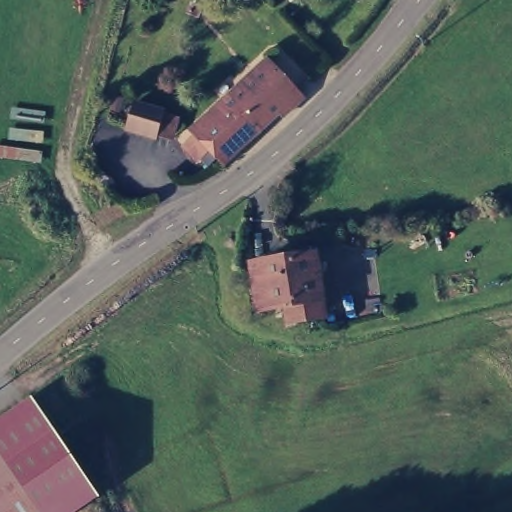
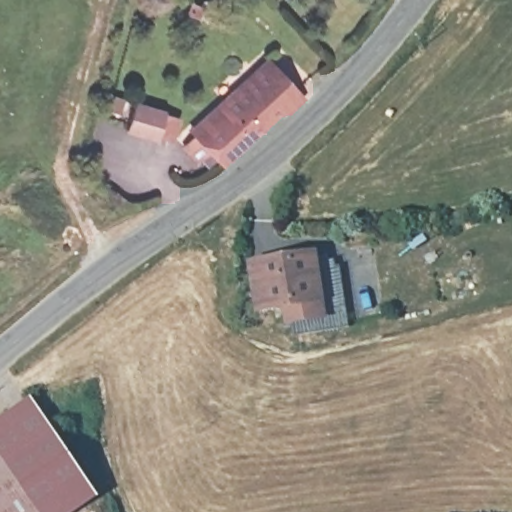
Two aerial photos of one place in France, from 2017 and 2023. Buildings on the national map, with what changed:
unchanged [(195,126),(193,126),(190,122),(266,52),(270,55),(283,70),(289,77),(302,91),(283,107),(279,102),(237,141),(238,142),(223,157),(209,142),(198,152),(184,136),(195,126)]
unchanged [(172,134),(158,130),(157,133),(127,124),(135,98),(165,107),(163,111),(178,115),(172,134)]
unchanged [(315,291),(317,307),(287,312),(284,295),(256,300),(249,257),(290,251),(302,249),(309,247),(315,291)]
unchanged [(0,512),(0,412),(29,393),(100,496),(74,512),(0,512)]

